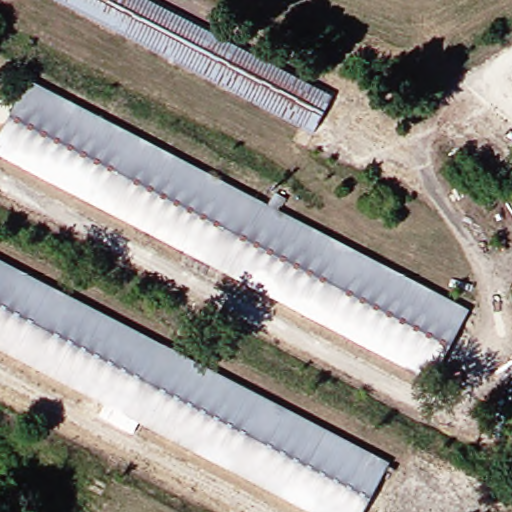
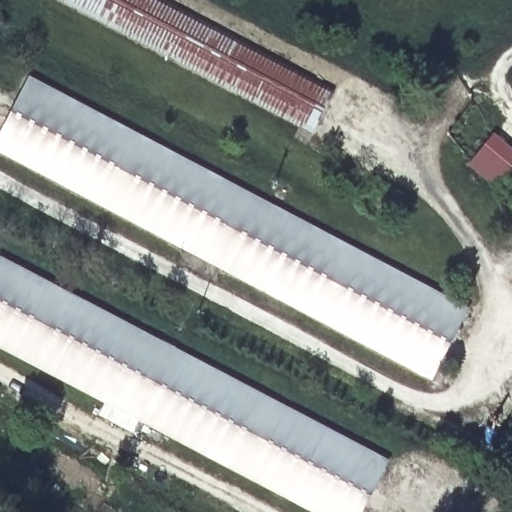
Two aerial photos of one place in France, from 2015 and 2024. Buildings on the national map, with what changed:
unchanged [(55,0),(158,0),(332,97),(309,140),(55,0)]
unchanged [(430,387),(1,142),(39,77),(469,319),(430,387)]
new [(512,169),(495,187),(469,164),(496,134),(512,148),(512,169)]
unchanged [(306,512),(0,338),(0,248),(390,468),(364,512),(306,512)]

